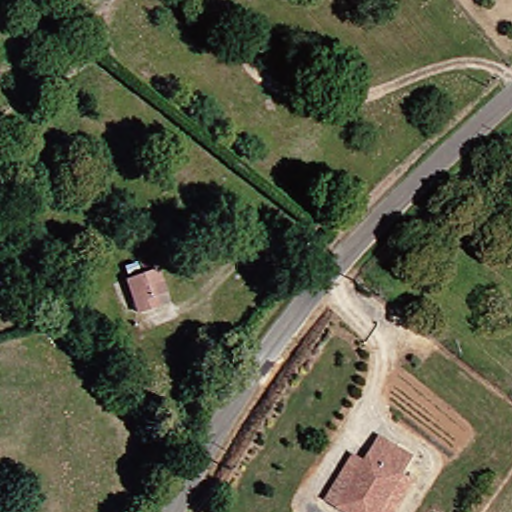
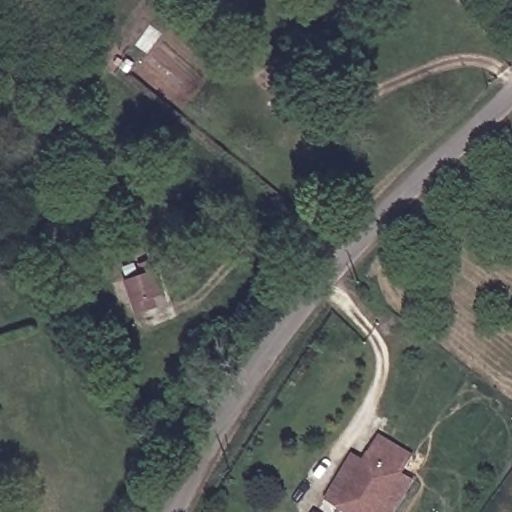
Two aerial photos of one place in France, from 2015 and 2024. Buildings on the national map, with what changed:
unchanged [(133,314),(120,282),(123,281),(118,270),(131,265),(132,268),(146,263),(150,271),(159,294),(150,298),(153,307),(133,314)]
unchanged [(412,459),(376,512),(345,512),(335,505),(350,481),(339,474),(353,453),(364,461),(381,438),(412,459)]

